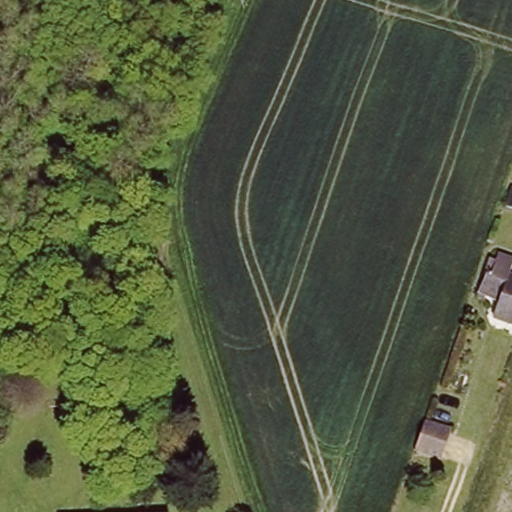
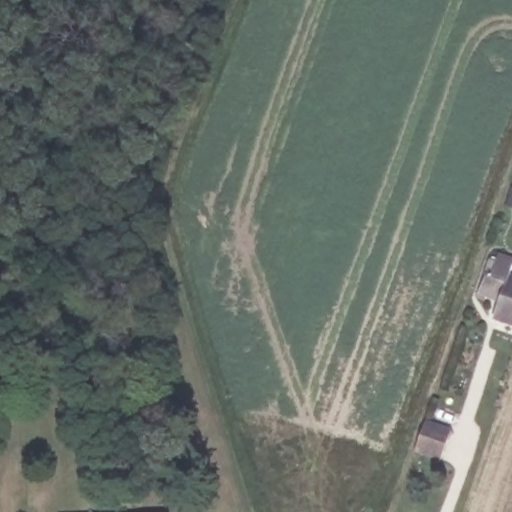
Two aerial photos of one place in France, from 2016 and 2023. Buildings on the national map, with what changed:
unchanged [(499,292),(478,285),(487,259),(490,260),(495,245),(511,251),(506,268),(512,270),(512,315),(493,308),(499,292)]
unchanged [(422,423),(448,432),(438,460),(413,451),(422,423)]

